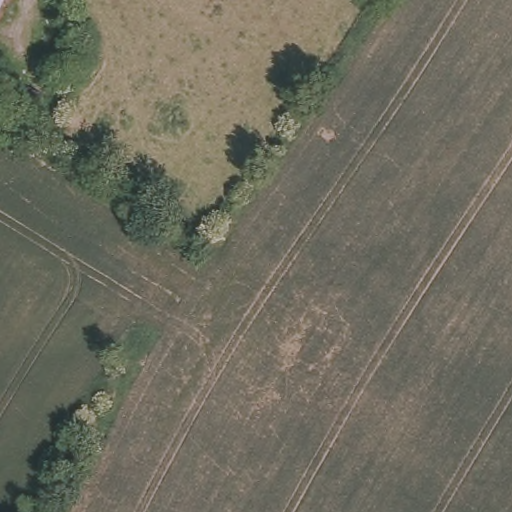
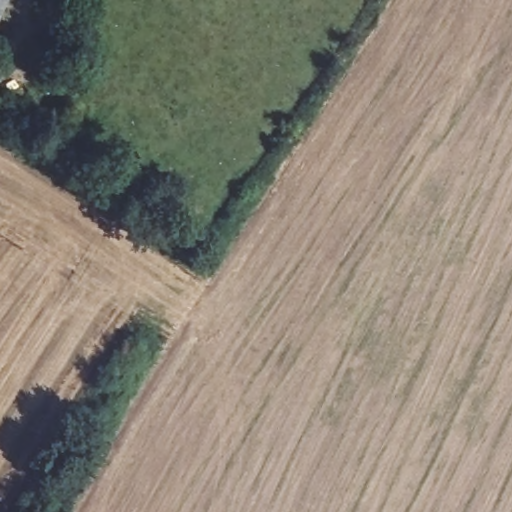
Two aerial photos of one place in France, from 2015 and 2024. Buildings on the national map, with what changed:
unchanged [(0,0),(13,0),(0,26),(0,0)]

